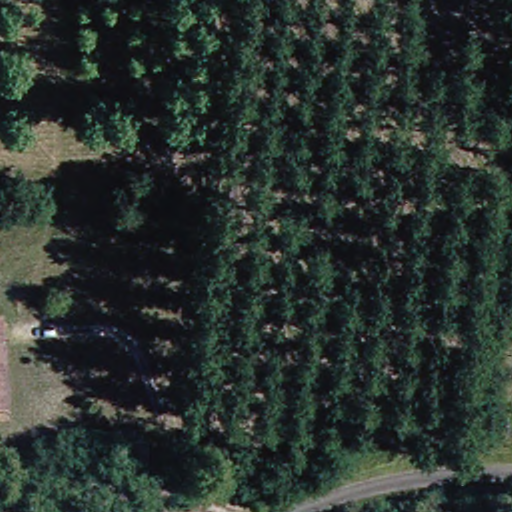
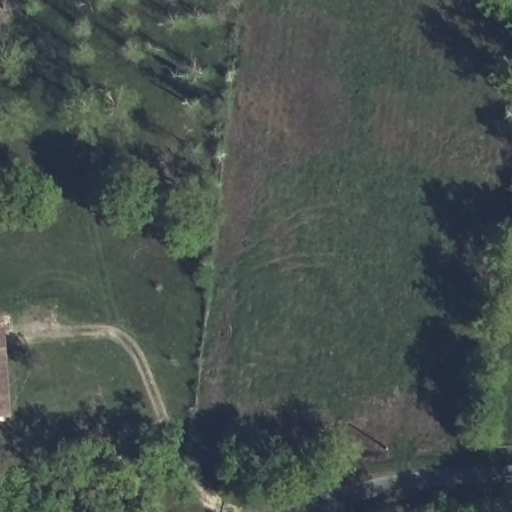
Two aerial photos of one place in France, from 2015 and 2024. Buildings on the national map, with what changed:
unchanged [(4,350),(0,350),(0,328),(4,328),(4,350)]

